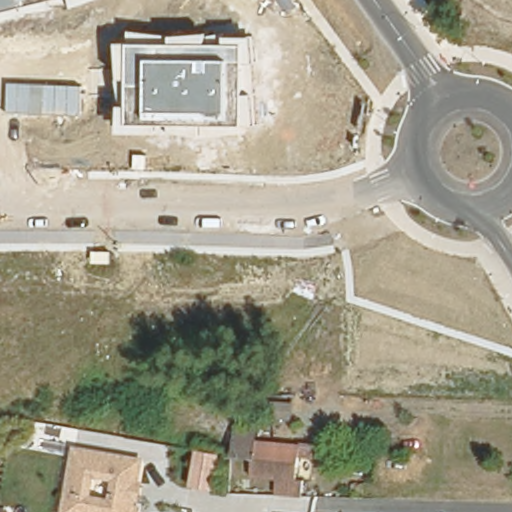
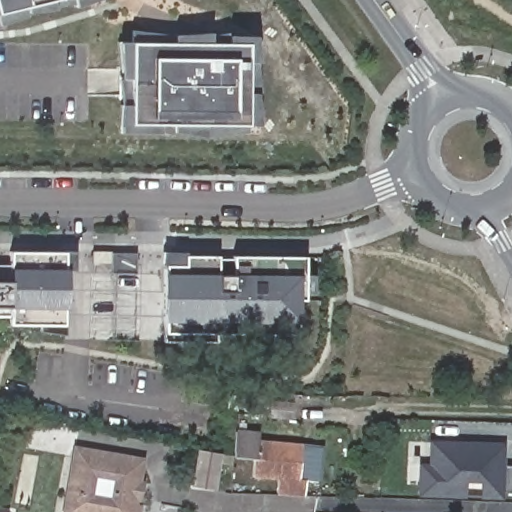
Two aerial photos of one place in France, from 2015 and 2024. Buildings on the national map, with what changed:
unchanged [(0,24),(0,0),(95,0),(0,24)]
unchanged [(262,133),(120,133),(119,35),(257,36),(262,133)]
new [(64,268),(65,308),(64,326),(8,325),(8,320),(0,320),(0,266),(8,266),(8,251),(64,252),(64,268)]
new [(95,251),(140,252),(139,273),(114,273),(114,262),(95,262),(95,251)]
new [(304,300),(297,300),(297,335),(217,334),(217,343),(162,342),(162,319),(163,273),(163,265),(183,265),(183,254),(217,255),(218,273),(232,273),(231,255),(304,256),(304,300)]
demolished [(418,299),(416,287),(429,285),(431,297),(418,299)]
unchanged [(253,475),(254,463),(234,462),(234,453),(235,435),(257,436),(256,440),(299,444),(295,493),(271,491),(272,481),(278,481),(279,478),(253,475)]
unchanged [(68,484),(76,442),(142,454),(137,476),(141,476),(139,486),(138,492),(134,491),(133,500),(139,501),(138,512),(80,512),(63,509),(68,484)]
new [(420,465),(429,465),(430,442),(501,445),(501,464),(512,465),(512,498),(419,494),(420,465)]
unchanged [(8,512),(0,512),(0,507),(8,508),(8,512)]

